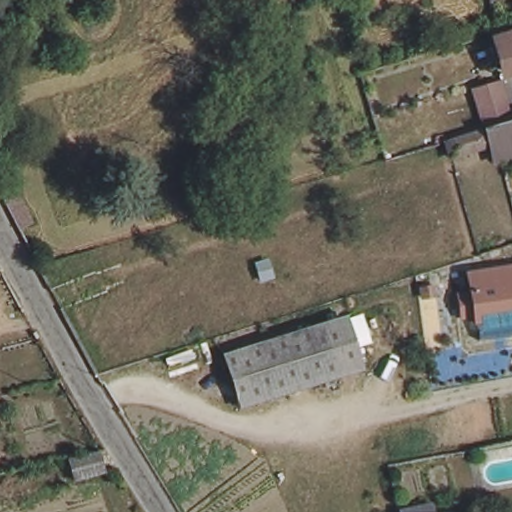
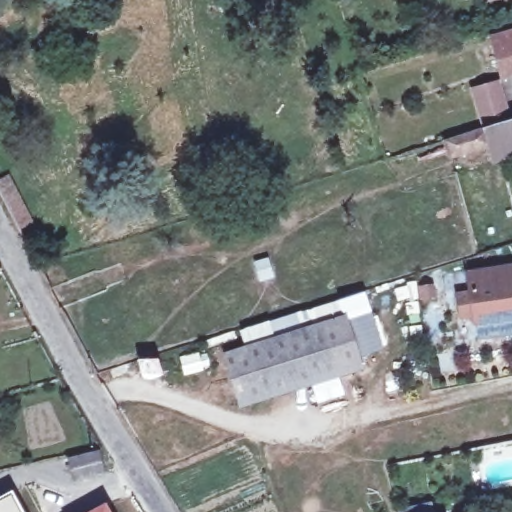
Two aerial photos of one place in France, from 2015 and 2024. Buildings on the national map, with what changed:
unchanged [(507,77),(495,39),(512,34),(512,76),(507,77)]
unchanged [(445,138),(482,126),(472,91),(497,85),(508,119),(512,118),(512,137),(496,143),(451,156),(445,138)]
unchanged [(500,155),(496,143),(512,137),(512,152),(500,155)]
unchanged [(473,325),(472,318),(460,321),(455,290),(467,288),(461,270),(512,262),(512,320),(473,325)]
unchanged [(245,404),(230,357),(351,320),(365,366),(245,404)]
unchanged [(73,461),(106,454),(111,474),(79,481),(73,461)]
new [(25,512),(0,512),(0,494),(12,488),(25,512)]
new [(111,512),(82,512),(105,500),(111,512)]
unchanged [(430,504),(431,512),(403,512),(402,509),(430,504)]

